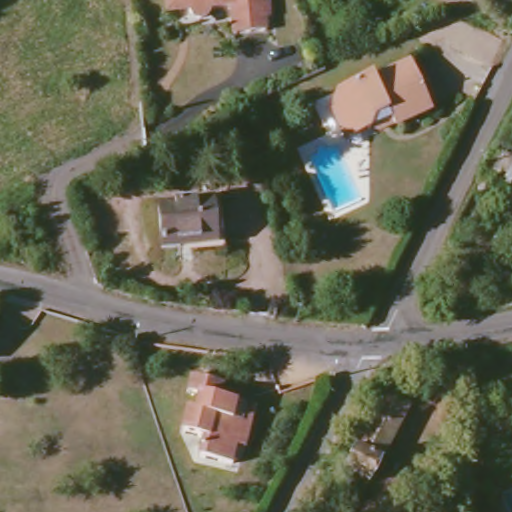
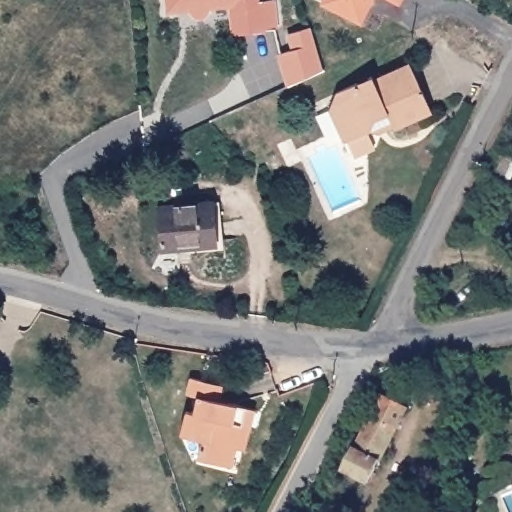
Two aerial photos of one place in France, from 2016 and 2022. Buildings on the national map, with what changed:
unchanged [(235,31),(232,3),(212,5),(207,13),(202,15),(197,14),(190,10),(189,2),(180,3),(180,8),(168,9),(167,0),(257,0),(269,0),(270,16),(265,16),(266,29),(235,31)]
new [(374,0),(360,25),(319,4),(321,0),(374,0)]
new [(386,0),(402,0),(399,6),(386,0)]
new [(323,69),(285,85),(276,54),(290,49),(286,34),(311,28),(323,69)]
unchanged [(341,124),(329,97),(336,80),(370,65),(373,70),(408,55),(429,100),(392,118),(377,124),(367,120),(344,130),(341,124)]
unchanged [(180,243),(180,247),(163,247),(159,205),(212,201),(217,239),(180,243)]
unchanged [(244,448),(236,446),(231,464),(197,456),(202,438),(182,432),(187,410),(193,412),(197,394),(187,392),(192,376),(222,383),(217,399),(247,407),(255,409),(244,448)]
unchanged [(347,471),(383,399),(406,410),(369,482),(347,471)]

